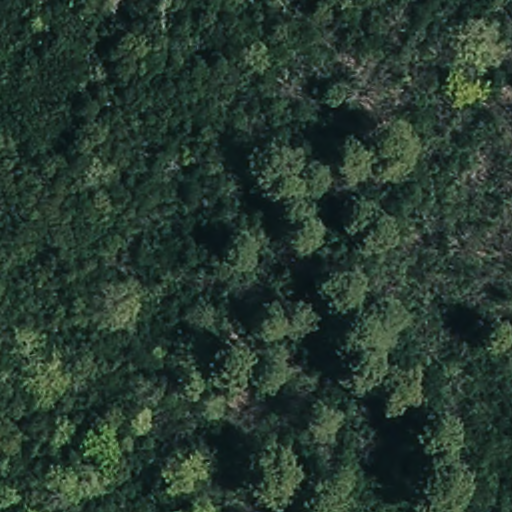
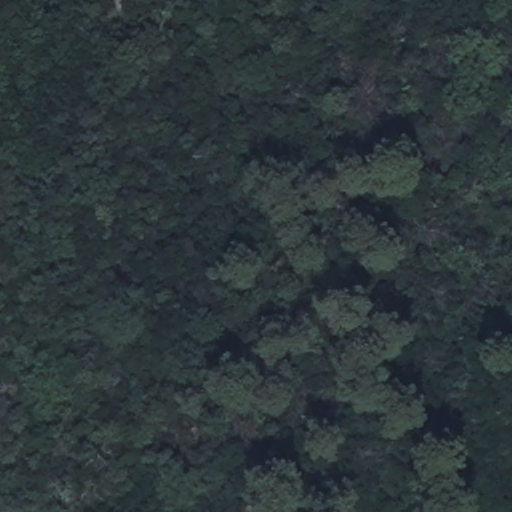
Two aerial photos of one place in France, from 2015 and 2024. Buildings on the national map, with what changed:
unchanged [(253,8),(237,8),(238,0),(253,0),(253,8)]

